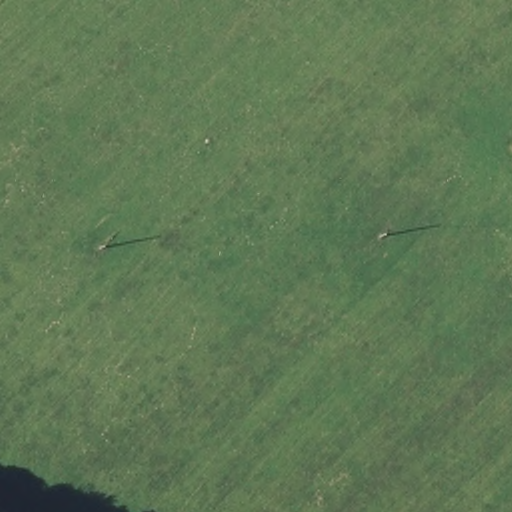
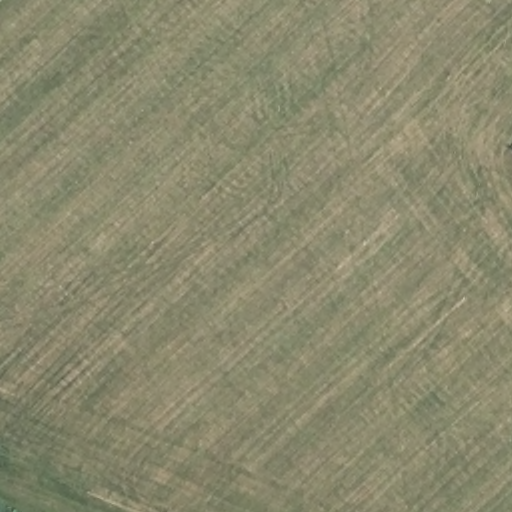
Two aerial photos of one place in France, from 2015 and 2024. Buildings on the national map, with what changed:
[]

